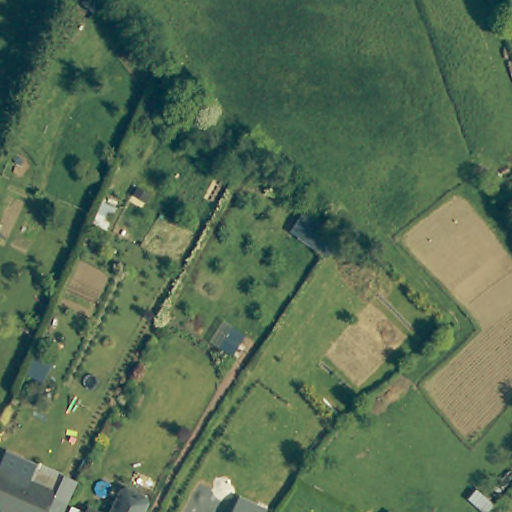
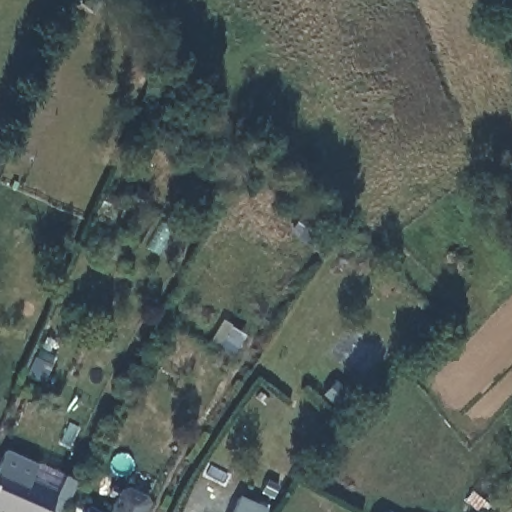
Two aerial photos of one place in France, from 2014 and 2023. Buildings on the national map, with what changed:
unchanged [(293,234),(306,220),(331,239),(320,256),(293,234)]
unchanged [(62,470),(76,475),(66,497),(59,512),(6,512),(0,510),(0,463),(55,486),(62,470)]
unchanged [(122,485),(141,492),(145,500),(139,512),(103,512),(115,488),(122,485)]
unchanged [(265,510),(264,512),(231,512),(238,497),(265,510)]
unchanged [(100,512),(78,512),(81,505),(100,512)]

